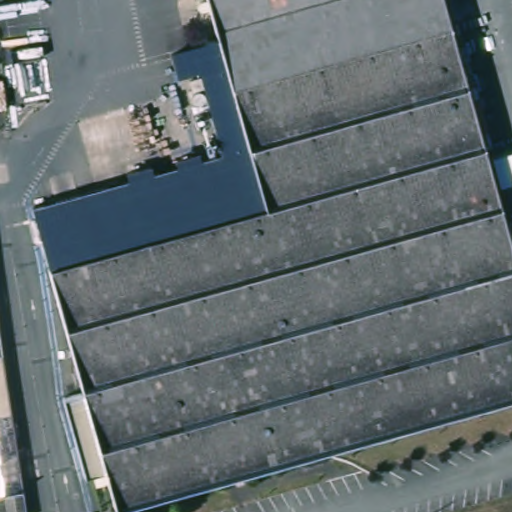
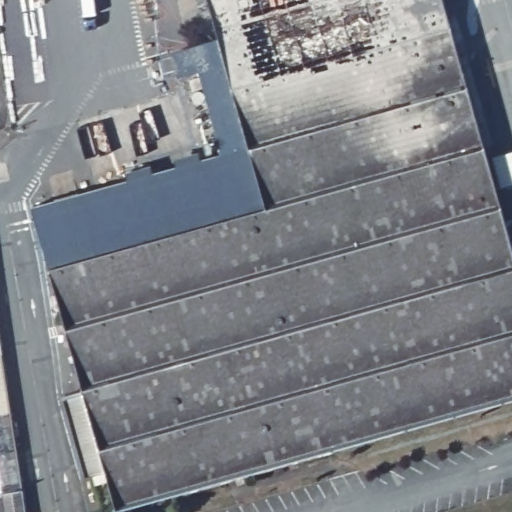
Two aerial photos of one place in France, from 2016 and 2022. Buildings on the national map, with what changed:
unchanged [(211,151),(196,79),(177,81),(170,51),(205,39),(197,0),(446,0),(512,240),(512,399),(117,508),(25,204),(211,151)]
unchanged [(24,512),(0,512),(0,317),(24,512)]

